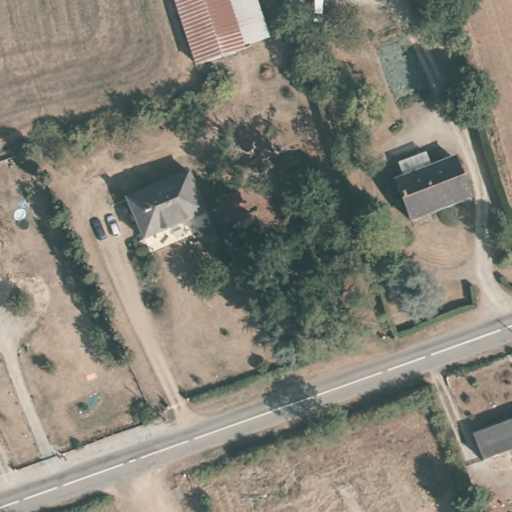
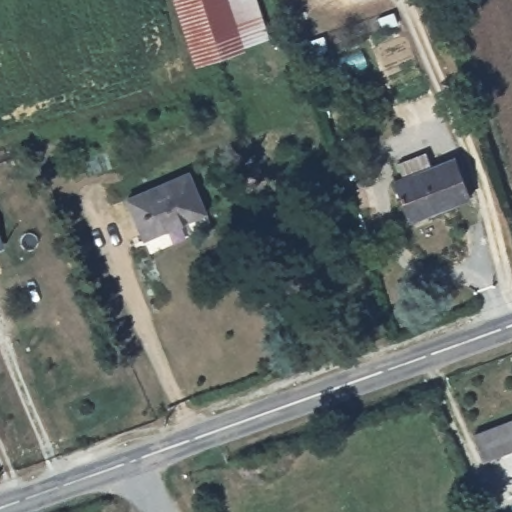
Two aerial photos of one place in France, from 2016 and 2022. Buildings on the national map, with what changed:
unchanged [(231,40),(232,43),(199,54),(181,0),(251,0),(261,30),(231,40)]
unchanged [(415,218),(402,179),(411,176),(406,162),(438,152),(442,165),(458,160),(471,200),(415,218)]
unchanged [(129,194),(192,174),(206,217),(142,238),(129,194)]
unchanged [(468,429),(512,416),(512,448),(478,458),(468,429)]

